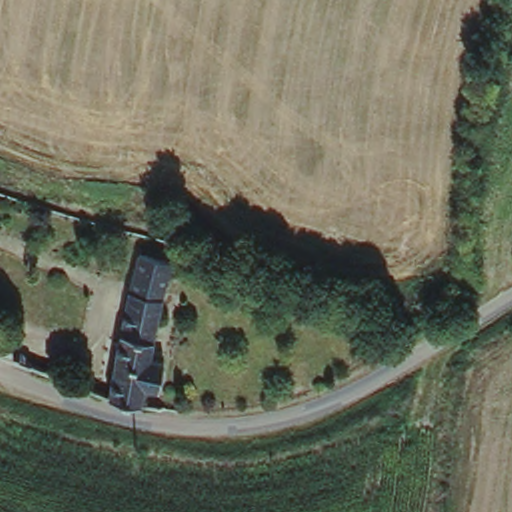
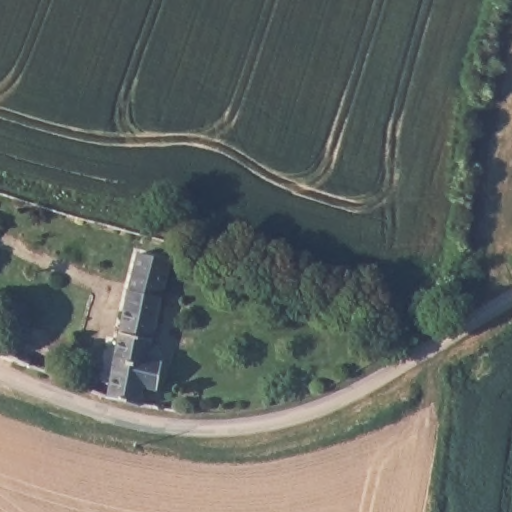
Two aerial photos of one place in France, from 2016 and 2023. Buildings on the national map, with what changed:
unchanged [(138,253),(172,258),(156,356),(167,359),(162,388),(151,387),(147,406),(108,395),(138,253)]

